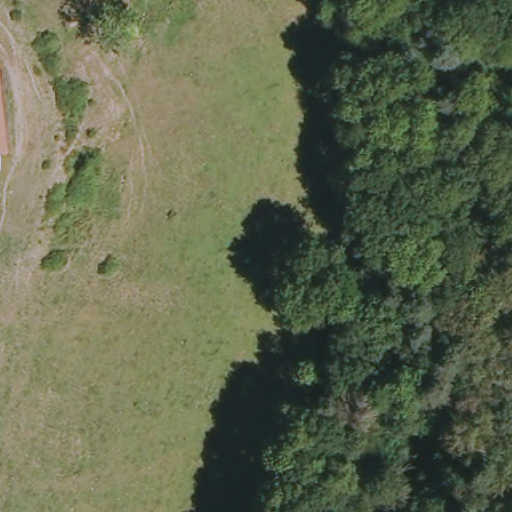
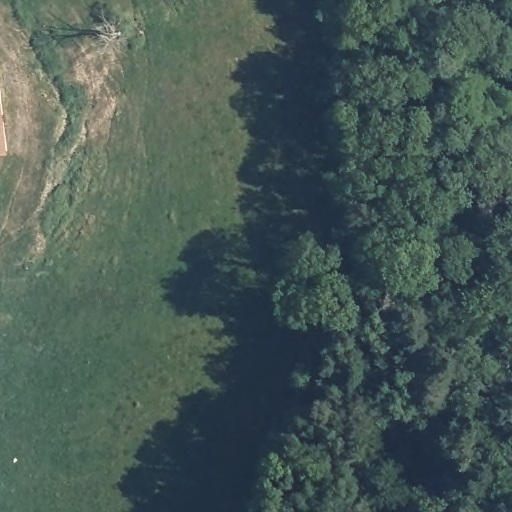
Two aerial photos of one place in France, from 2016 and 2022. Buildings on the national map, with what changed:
unchanged [(8,151),(0,152),(0,66),(1,65),(8,151)]

